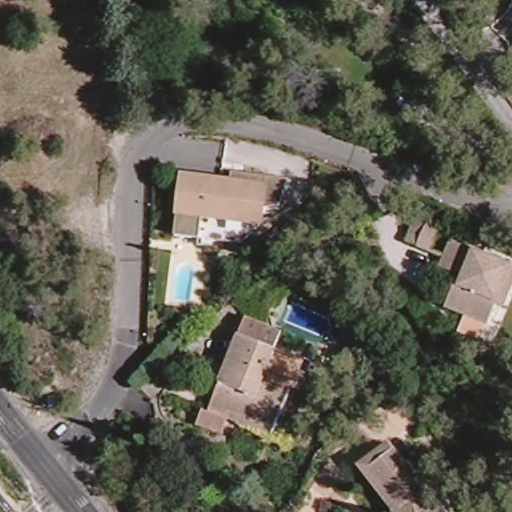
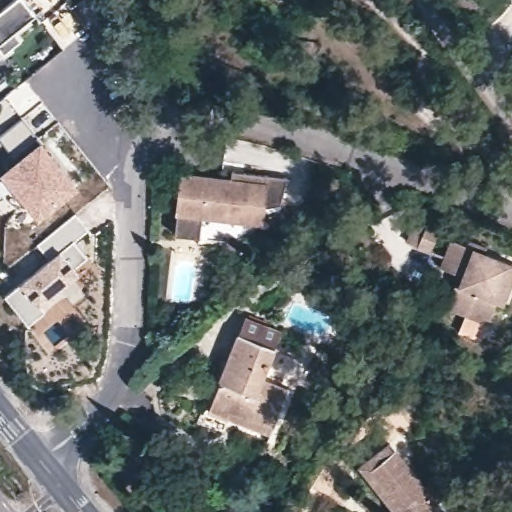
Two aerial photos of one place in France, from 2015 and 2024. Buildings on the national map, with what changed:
new [(16,0),(24,0),(38,18),(22,31),(27,40),(7,55),(0,50),(0,12),(16,0)]
new [(0,137),(23,120),(42,143),(45,139),(80,187),(38,220),(0,174),(18,160),(0,137)]
unchanged [(265,225),(204,215),(200,238),(175,234),(185,169),(235,177),(236,168),(295,177),(285,206),(270,208),(267,225),(265,225)]
new [(37,244),(77,213),(90,229),(75,243),(87,259),(75,268),(80,274),(43,304),(47,311),(31,323),(6,295),(21,280),(50,257),(37,244)]
unchanged [(436,229),(427,250),(406,242),(414,220),(436,229)]
unchanged [(484,323),(442,304),(452,283),(456,274),(438,266),(448,240),(463,245),(465,240),(474,243),(472,249),(508,264),(512,266),(512,281),(501,306),(492,302),(484,323)]
unchanged [(272,280),(280,292),(248,316),(239,303),(272,280)]
unchanged [(289,392),(274,439),(231,424),(224,438),(201,430),(206,414),(213,416),(223,387),(222,384),(241,338),(247,321),(284,336),(278,352),(267,383),(289,392)]
unchanged [(49,406),(48,397),(66,395),(67,406),(50,408),(49,406)]
unchanged [(395,447),(401,454),(404,452),(451,512),(401,512),(367,469),(395,447)]

